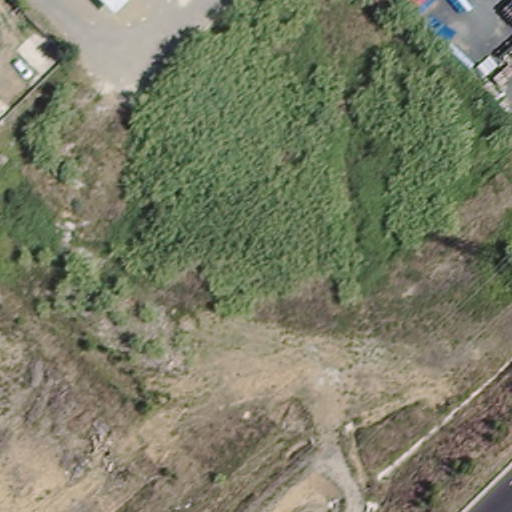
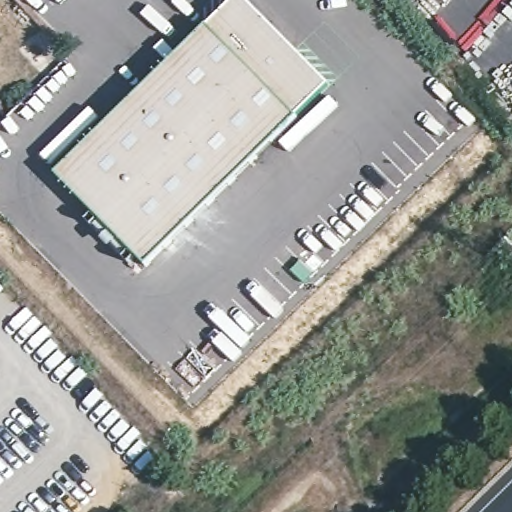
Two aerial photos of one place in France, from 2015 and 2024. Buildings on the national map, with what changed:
new [(243,0),(329,84),(148,267),(58,177),(234,0),(243,0)]
demolished [(103,0),(125,0),(113,11),(103,0)]

